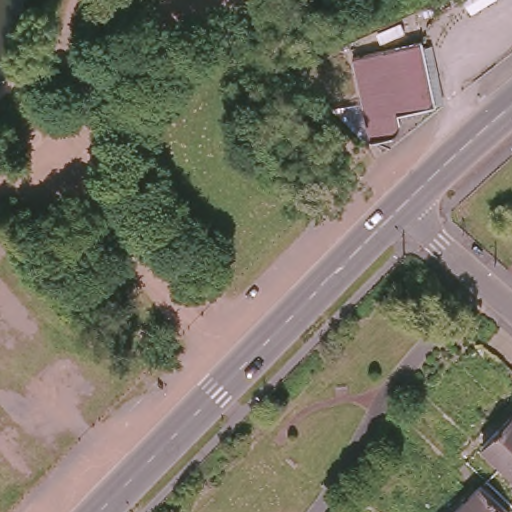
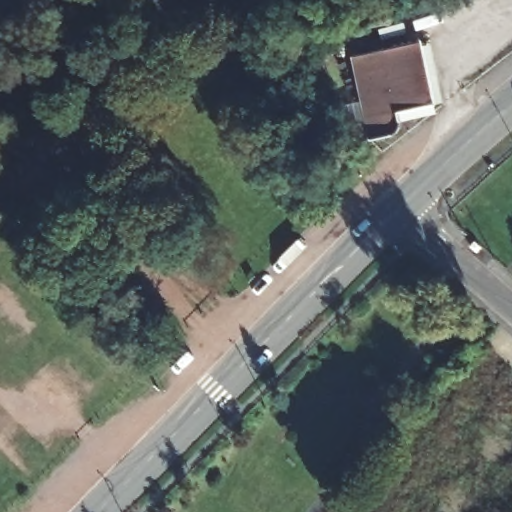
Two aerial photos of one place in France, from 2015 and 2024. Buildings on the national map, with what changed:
unchanged [(349,51),(416,37),(427,89),(426,96),(420,103),(394,107),(396,121),(387,134),(367,136),(349,51)]
demolished [(498,428),(512,414),(512,442),(498,428)]
demolished [(512,442),(512,478),(480,446),(498,428),(512,442)]
demolished [(506,512),(461,512),(457,508),(480,485),(506,512)]
demolished [(453,512),(457,508),(461,512),(453,512)]

